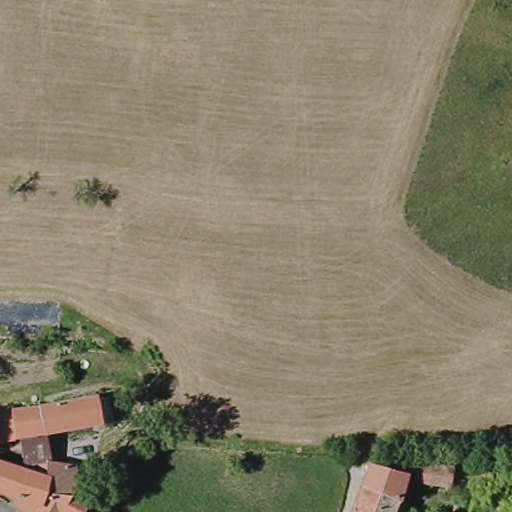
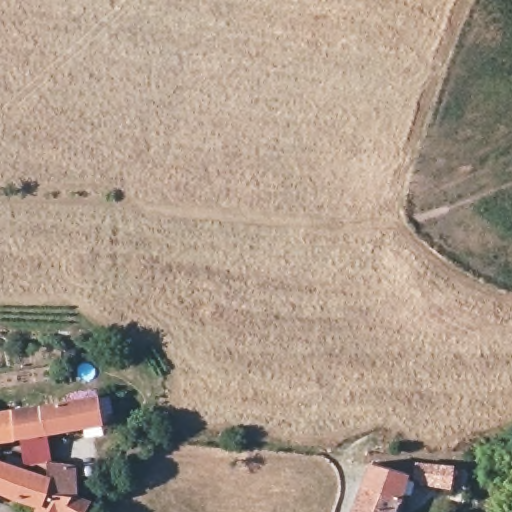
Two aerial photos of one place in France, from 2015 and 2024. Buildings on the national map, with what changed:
unchanged [(42,459),(24,458),(19,438),(0,441),(0,410),(95,393),(102,424),(42,435),(43,438),(44,440),(45,443),(46,448),(48,458),(42,459)]
unchanged [(23,504),(20,503),(17,502),(15,501),(7,497),(0,494),(0,461),(27,467),(47,471),(50,461),(58,462),(71,461),(78,489),(77,496),(86,501),(81,512),(32,512),(33,509),(23,504)]
unchanged [(358,512),(377,467),(410,478),(396,512),(358,512)]
unchanged [(458,486),(427,485),(427,482),(422,481),(422,471),(425,471),(427,470),(459,471),(458,486)]

